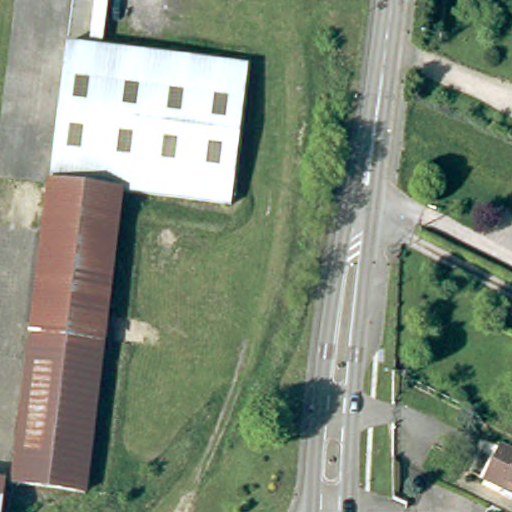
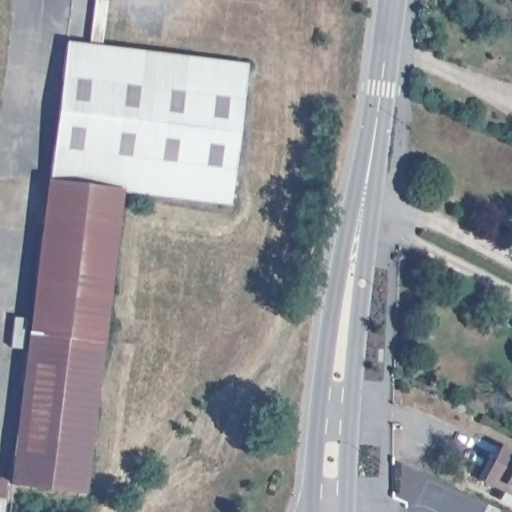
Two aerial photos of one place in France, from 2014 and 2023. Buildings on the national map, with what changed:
unchanged [(248,62),(234,201),(122,190),(92,493),(21,485),(66,44),(248,62)]
unchanged [(512,464),(512,496),(500,490),(497,496),(478,487),(494,455),(512,464)]
unchanged [(2,512),(0,512),(0,478),(6,479),(2,512)]

